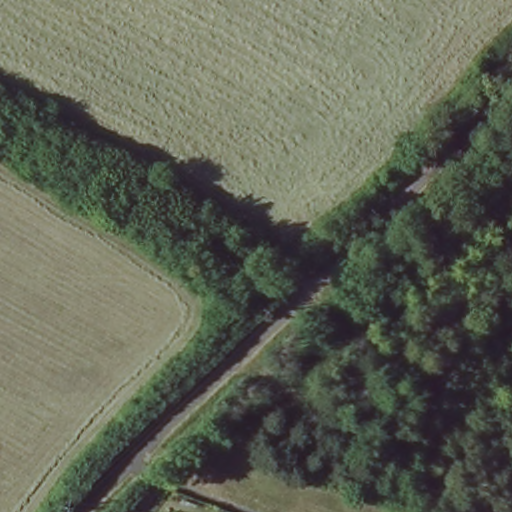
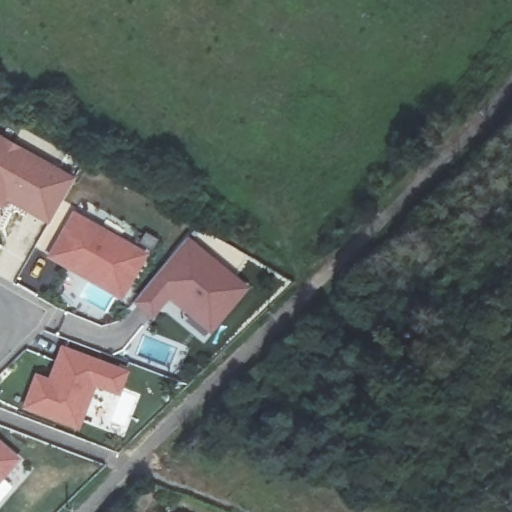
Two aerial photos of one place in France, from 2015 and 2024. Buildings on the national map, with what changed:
new [(55,220),(12,195),(6,204),(0,200),(0,130),(78,174),(55,220)]
new [(147,254),(121,298),(45,257),(72,210),(147,254)]
new [(193,233),(253,284),(215,328),(172,294),(155,314),(135,298),(193,233)]
new [(37,370),(52,376),(67,343),(135,369),(122,402),(98,392),(83,431),(22,405),(37,370)]
new [(0,487),(0,433),(27,457),(0,487)]

